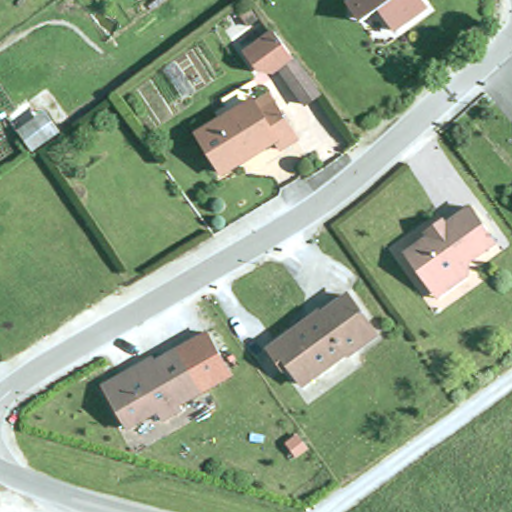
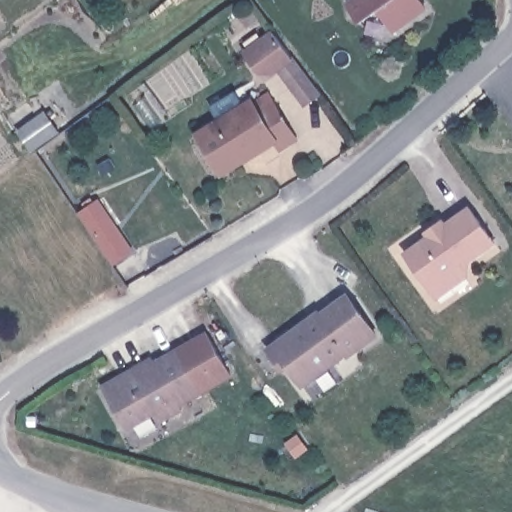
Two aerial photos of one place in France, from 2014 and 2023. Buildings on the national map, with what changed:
unchanged [(354,0),(424,0),(429,5),(430,8),(419,15),(398,30),(382,9),(369,19),(365,22),(351,3),(354,0)]
unchanged [(318,91),(304,101),(286,76),(280,68),(268,77),(245,52),(272,32),(300,67),(310,81),(318,91)]
unchanged [(269,91),(298,135),(280,146),(275,139),(225,172),(200,135),(269,91)]
new [(99,200),(132,251),(113,263),(80,213),(99,200)]
unchanged [(437,299),(430,289),(405,254),(430,237),(427,233),(442,221),(446,225),(469,209),(495,244),(460,268),(467,278),(437,299)]
unchanged [(270,349),(275,346),(293,333),(295,335),(307,326),(305,324),(320,314),(320,316),(349,298),(377,335),(349,356),(347,354),(303,385),(290,366),(285,369),(270,349)]
unchanged [(162,421),(157,413),(127,429),(103,388),(122,377),(134,370),(154,359),(157,363),(182,347),(207,334),(234,378),(205,394),(182,409),(162,421)]

